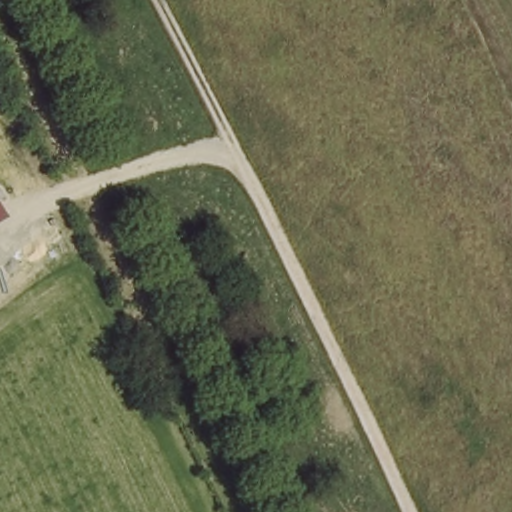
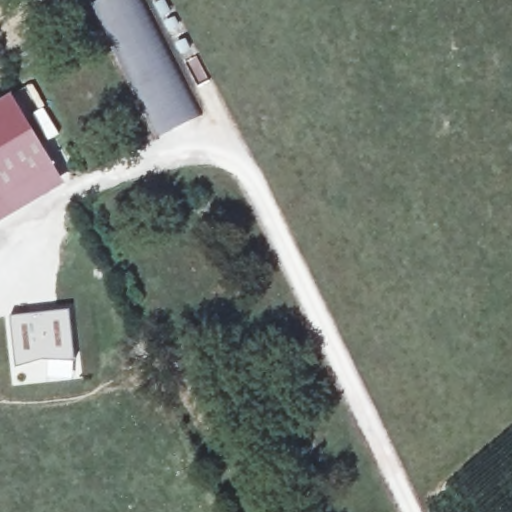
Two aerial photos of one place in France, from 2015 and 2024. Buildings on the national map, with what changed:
new [(88,4),(96,0),(143,0),(200,114),(157,137),(88,4)]
new [(10,92),(62,181),(14,214),(0,191),(0,99),(10,92)]
unchanged [(14,214),(0,222),(0,191),(14,214)]
new [(72,360),(44,357),(15,367),(11,315),(68,308),(72,360)]

